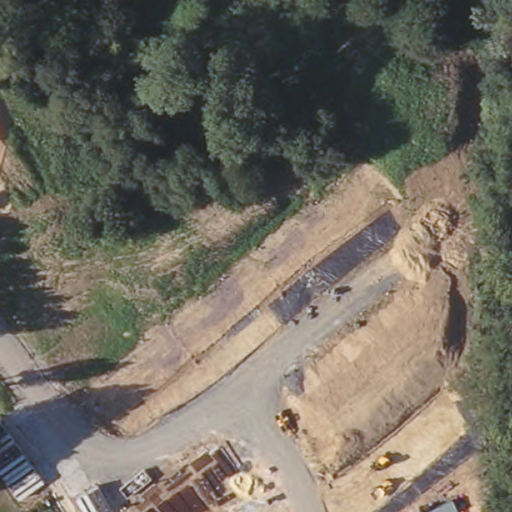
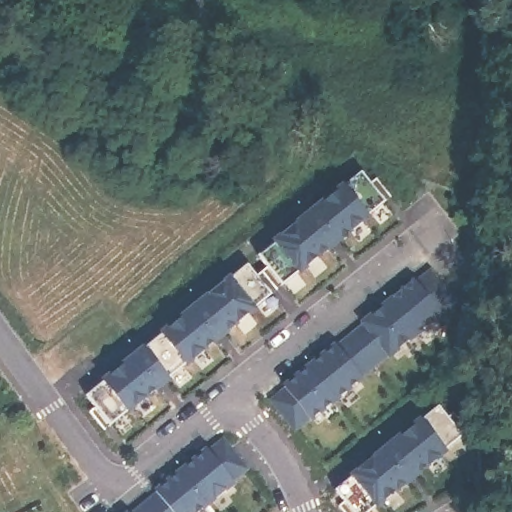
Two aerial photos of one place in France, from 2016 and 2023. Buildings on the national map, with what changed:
new [(367,165),(391,196),(282,284),(257,251),(367,165)]
new [(249,257),(277,289),(111,425),(85,391),(249,257)]
new [(423,267),(453,298),(299,430),(271,396),(423,267)]
new [(466,432),(368,512),(354,512),(333,486),(440,400),(466,432)]
new [(242,469),(192,512),(123,512),(213,438),(242,469)]

